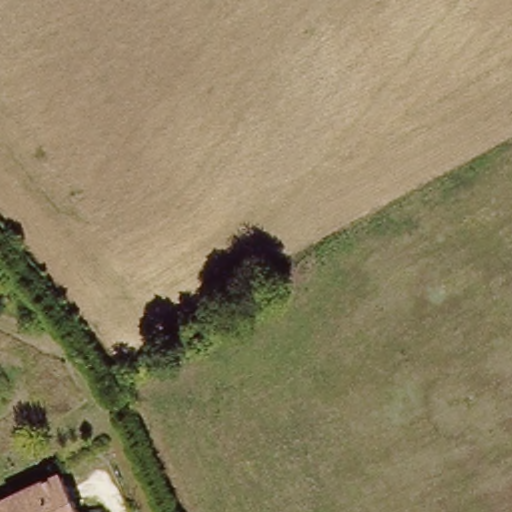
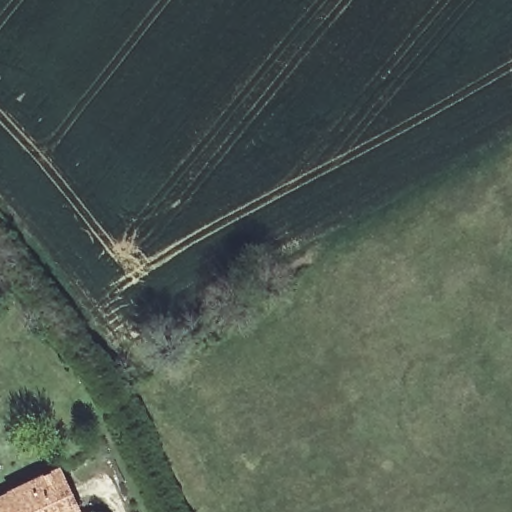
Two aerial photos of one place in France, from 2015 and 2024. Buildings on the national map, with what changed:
unchanged [(79,512),(0,512),(0,502),(63,472),(79,512)]

